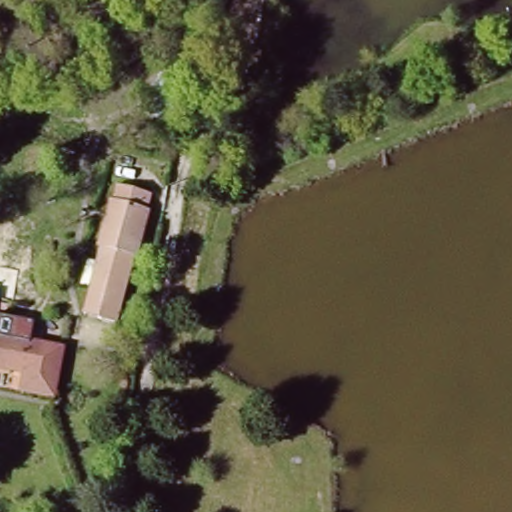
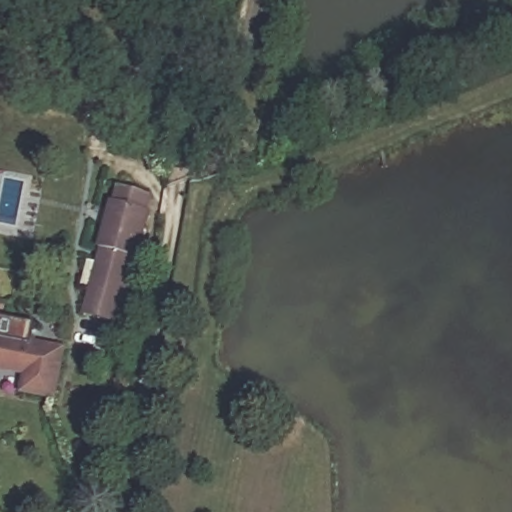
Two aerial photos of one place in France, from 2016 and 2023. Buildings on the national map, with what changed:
unchanged [(109,199),(116,199),(117,186),(142,189),(141,204),(145,204),(139,252),(132,252),(124,322),(97,319),(105,249),(103,249),(109,199)]
unchanged [(7,300),(2,327),(60,335),(52,381),(16,376),(18,365),(0,363),(0,299),(7,300)]

